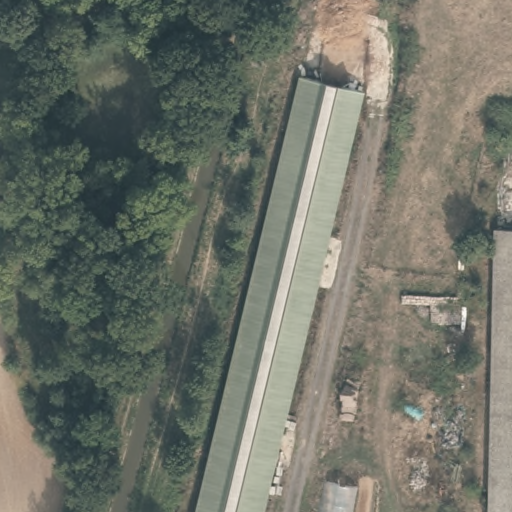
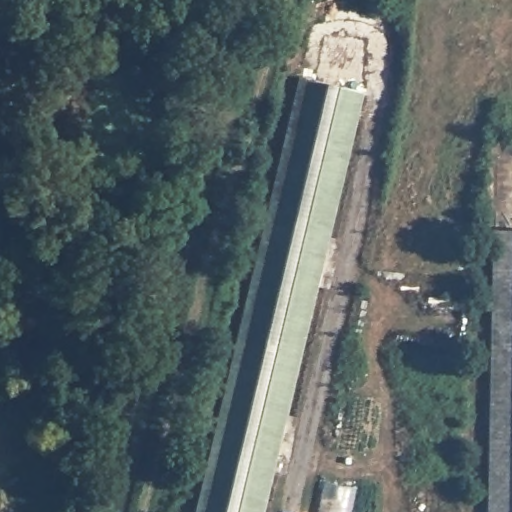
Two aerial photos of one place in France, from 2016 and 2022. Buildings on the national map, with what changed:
unchanged [(264,512),(196,512),(300,77),(364,93),(264,512)]
unchanged [(490,512),(494,232),(512,232),(512,512),(490,512)]

